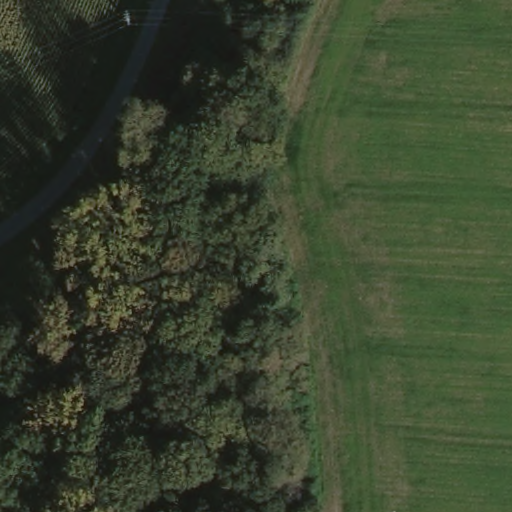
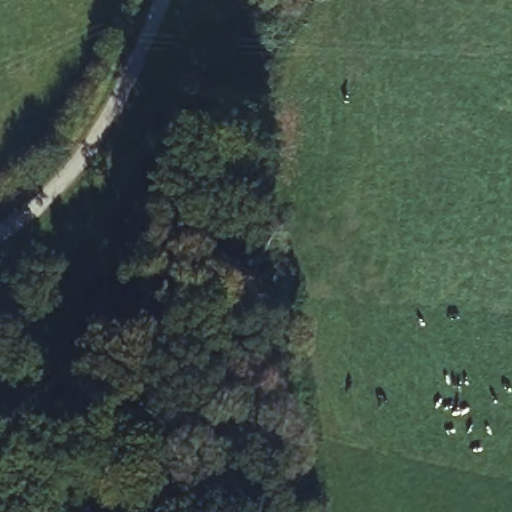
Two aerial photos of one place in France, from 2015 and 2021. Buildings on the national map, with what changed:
[]

